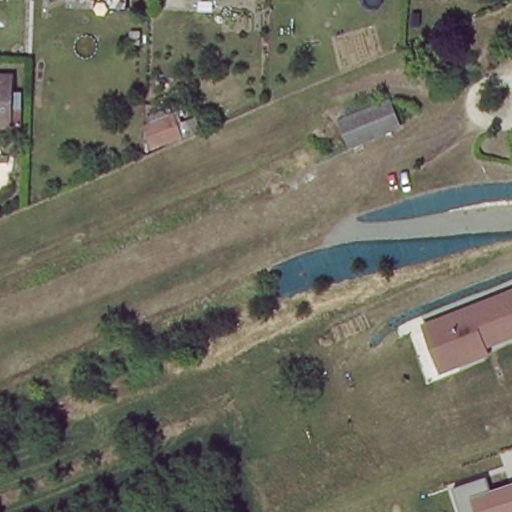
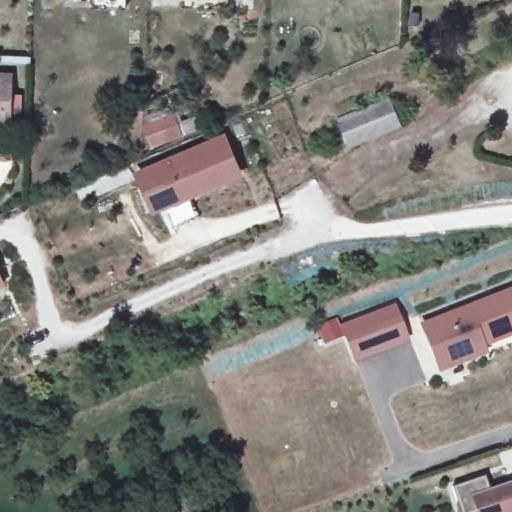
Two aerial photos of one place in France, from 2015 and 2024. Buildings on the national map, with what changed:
unchanged [(0,125),(0,77),(12,78),(10,125),(0,125)]
unchanged [(400,126),(350,148),(341,123),(390,102),(400,126)]
unchanged [(142,130),(173,116),(184,134),(154,148),(142,130)]
new [(152,215),(140,188),(134,175),(225,136),(241,172),(188,195),(190,199),(194,207),(199,218),(170,230),(166,219),(162,211),(152,215)]
new [(0,285),(0,270),(6,283),(0,285)]
unchanged [(438,375),(417,326),(512,286),(512,344),(438,375)]
new [(337,316),(340,323),(396,301),(410,340),(354,362),(344,336),(324,344),(316,324),(337,316)]
unchanged [(455,489),(488,477),(494,493),(512,488),(512,512),(462,512),(455,489)]

